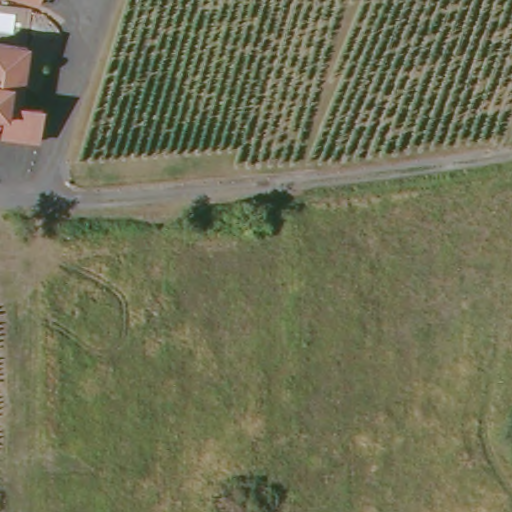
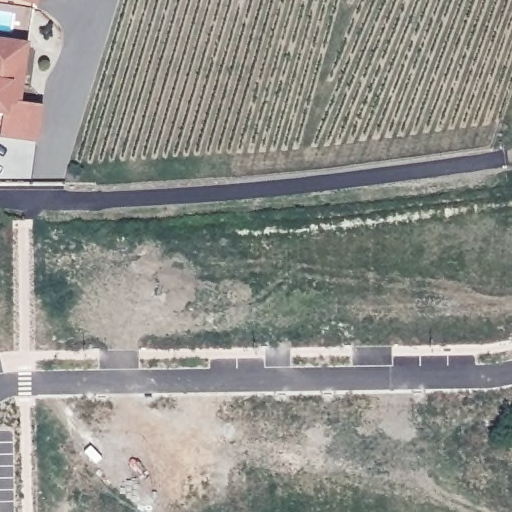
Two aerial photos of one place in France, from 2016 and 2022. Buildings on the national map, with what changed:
unchanged [(27,0),(38,0),(37,3),(27,0)]
unchanged [(18,104),(40,106),(36,139),(0,134),(3,115),(0,114),(0,39),(26,42),(18,104)]

